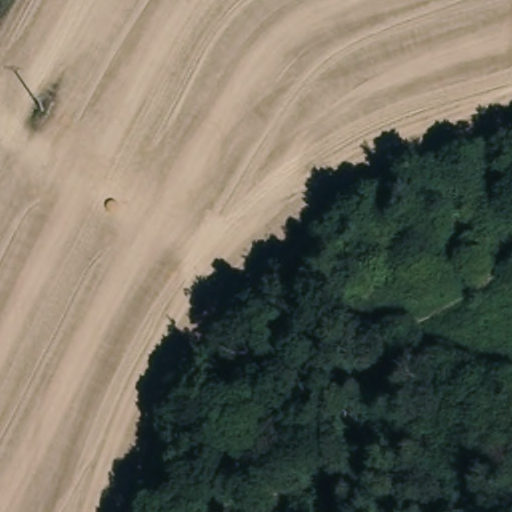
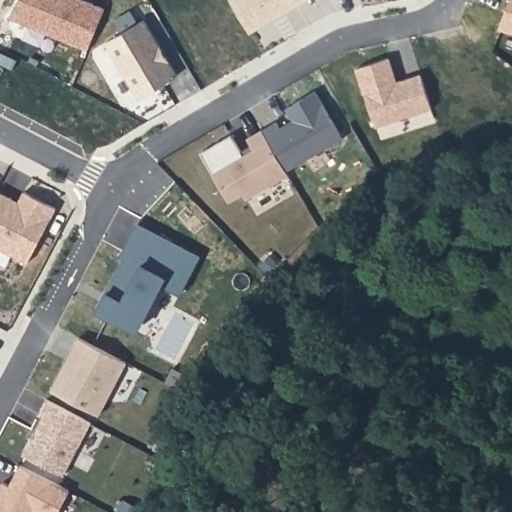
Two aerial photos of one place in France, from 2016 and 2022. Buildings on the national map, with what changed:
new [(87,0),(105,8),(87,49),(23,22),(32,0),(87,0)]
new [(231,0),(304,0),(250,32),(231,0)]
new [(512,0),(512,32),(499,27),(509,0),(512,0)]
new [(143,19),(176,75),(139,97),(106,41),(143,19)]
new [(388,57),(396,81),(421,73),(432,108),(375,126),(365,92),(363,93),(355,68),(388,57)]
new [(276,121),(280,126),(292,119),(286,107),(315,90),(342,137),(286,170),(262,129),(276,121)]
new [(241,150),(251,144),(247,137),(262,129),(286,170),(288,174),(247,198),(243,192),(229,200),(200,151),(231,134),(241,150)]
new [(24,191),(56,208),(27,263),(0,248),(0,191),(18,201),(24,191)]
new [(130,257),(126,256),(138,224),(202,249),(187,288),(168,280),(154,317),(137,325),(112,315),(107,314),(115,296),(130,257)]
new [(79,337),(127,362),(99,415),(51,390),(79,337)]
new [(32,438),(35,439),(46,418),(37,414),(47,399),(91,422),(62,475),(24,454),(32,438)]
new [(10,485),(21,464),(70,490),(58,512),(0,512),(0,487),(3,481),(10,485)]

